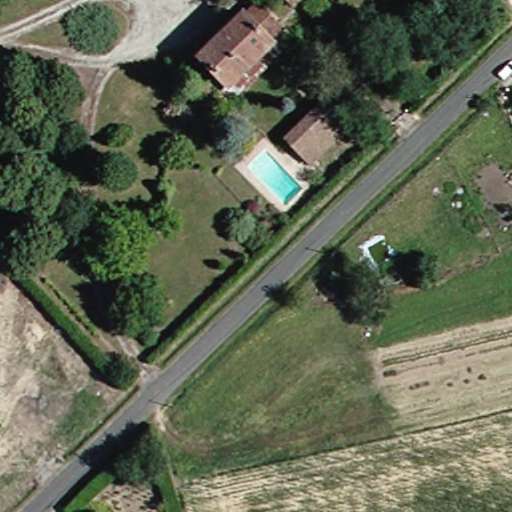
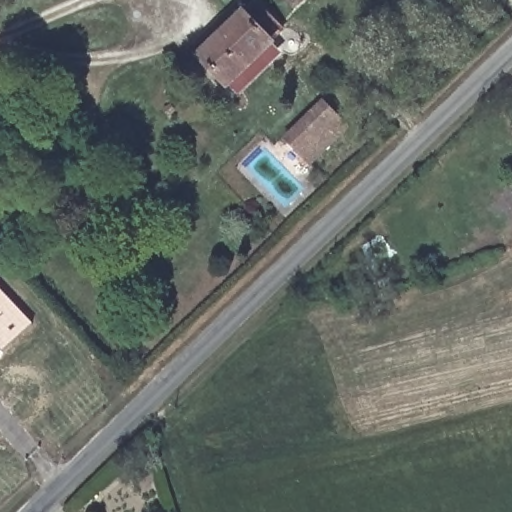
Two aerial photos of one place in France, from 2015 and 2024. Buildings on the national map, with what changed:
unchanged [(285,0),(310,0),(296,12),(285,0)]
unchanged [(207,60),(251,15),(257,21),(265,11),(277,22),(290,35),(280,44),(237,89),(207,60)]
unchanged [(212,107),(199,93),(210,81),(222,97),(212,107)]
unchanged [(354,127),(315,165),(288,135),(326,96),(354,127)]
new [(3,350),(0,347),(0,287),(33,323),(3,350)]

